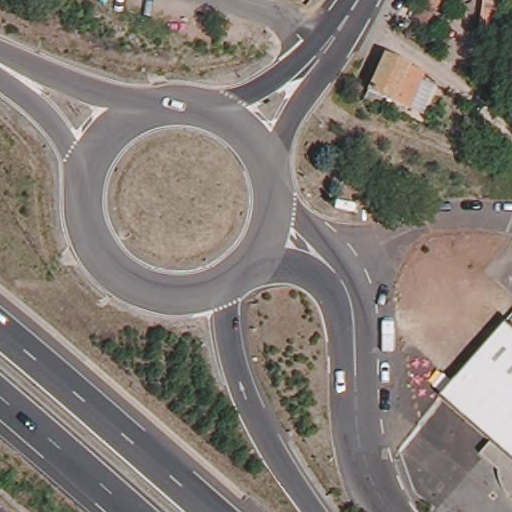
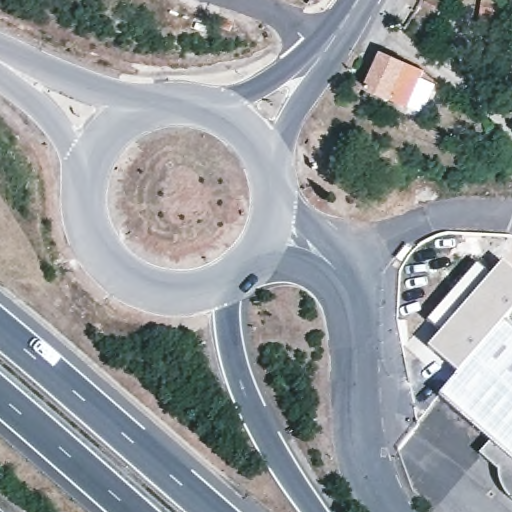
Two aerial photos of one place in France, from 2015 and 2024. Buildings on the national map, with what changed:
unchanged [(481,20),(484,0),(506,0),(505,27),(481,20)]
unchanged [(221,21),(235,26),(232,34),(218,29),(221,21)]
unchanged [(364,92),(378,57),(407,68),(405,78),(412,84),(403,111),(364,92)]
new [(502,262),(512,270),(512,308),(502,319),(459,374),(428,347),(441,331),(427,320),(476,264),(490,275),(502,262)]
unchanged [(492,464),(476,451),(490,437),(442,396),(502,319),(512,327),(512,499),(503,494),(492,464)]

